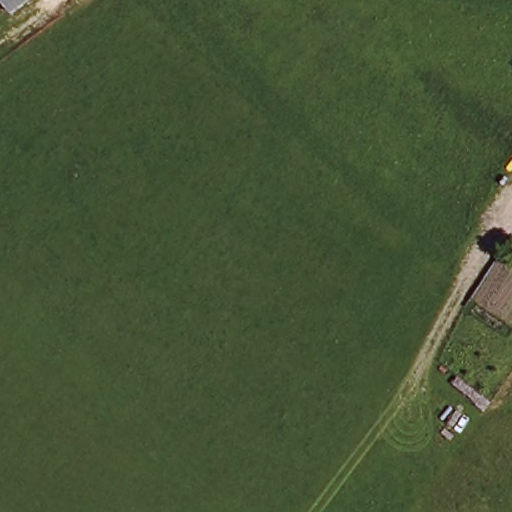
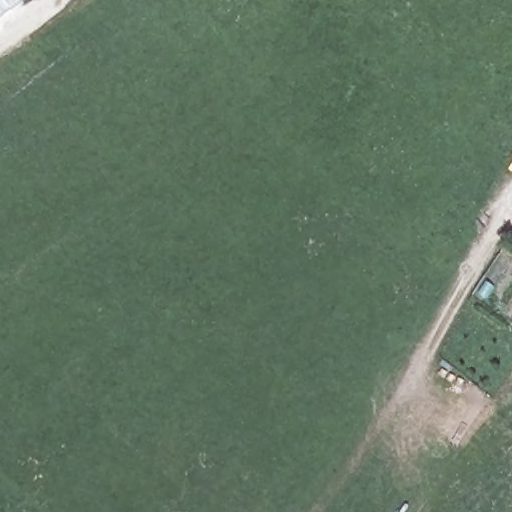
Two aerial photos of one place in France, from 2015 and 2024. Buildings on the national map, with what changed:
unchanged [(10,11),(3,0),(25,0),(10,11)]

